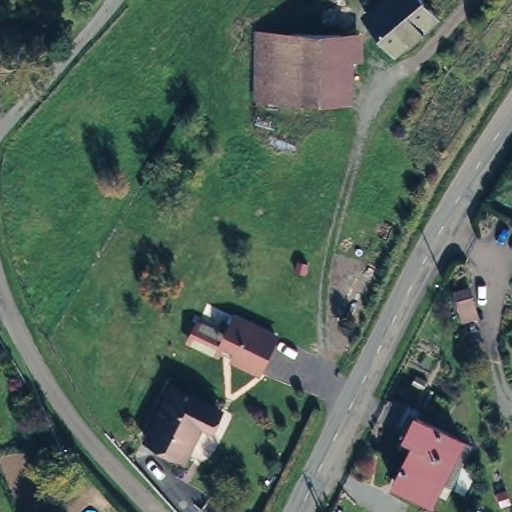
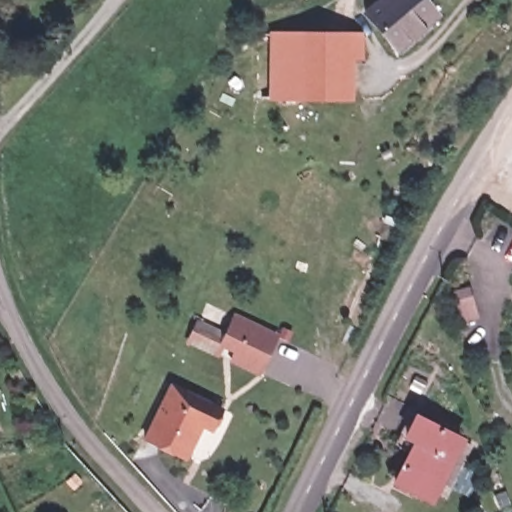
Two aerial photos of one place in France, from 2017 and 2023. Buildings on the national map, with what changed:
unchanged [(423,2),(430,11),(393,43),(357,2),(359,0),(424,0),(425,1),(423,2)]
unchanged [(355,26),(357,98),(245,96),(247,23),(355,26)]
unchanged [(454,284),(478,276),(490,315),(466,322),(454,284)]
unchanged [(259,376),(183,342),(196,319),(222,331),(231,313),(278,334),(259,376)]
unchanged [(211,402),(201,423),(193,420),(177,451),(135,429),(161,377),(211,402)]
unchanged [(428,512),(427,512),(392,490),(410,446),(395,438),(399,428),(405,432),(416,412),(466,443),(428,512)]

